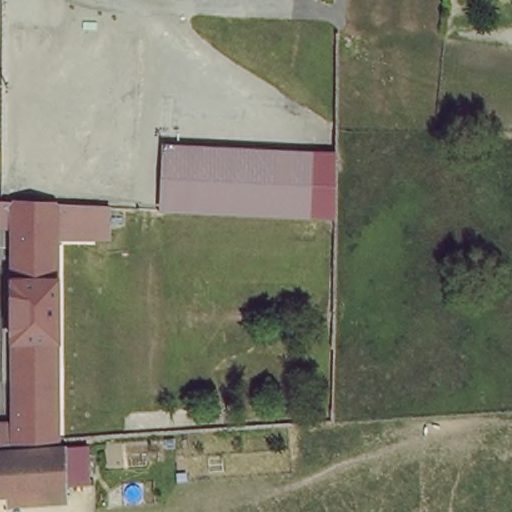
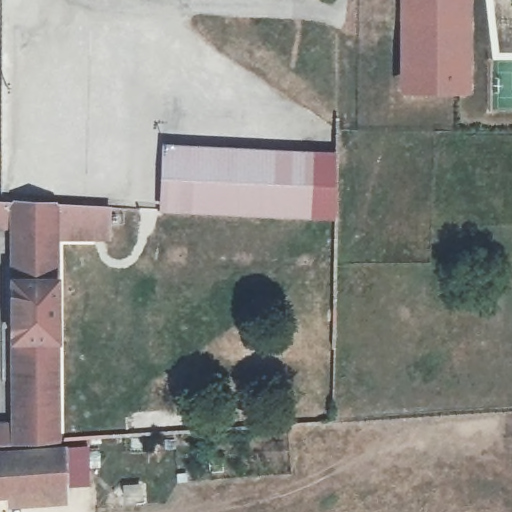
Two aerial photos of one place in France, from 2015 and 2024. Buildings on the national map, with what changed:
demolished [(383,17),(383,0),(426,0),(426,17),(383,17)]
new [(473,0),(474,14),(473,94),(398,92),(398,0),(473,0)]
demolished [(480,86),(437,64),(448,40),(491,62),(480,86)]
unchanged [(164,145),(315,152),(312,217),(161,210),(164,145)]
unchanged [(335,153),(335,218),(312,217),(315,152),(335,153)]
unchanged [(13,394),(13,337),(11,337),(10,275),(14,275),(13,222),(0,222),(0,197),(77,201),(107,202),(106,232),(55,232),(54,232),(54,275),(56,275),(56,297),(56,318),(56,336),(53,336),(53,369),(53,393),(54,436),(16,438),(15,438),(0,440),(0,421),(12,421),(13,394)]
unchanged [(62,486),(0,490),(0,448),(62,444),(62,486)]

